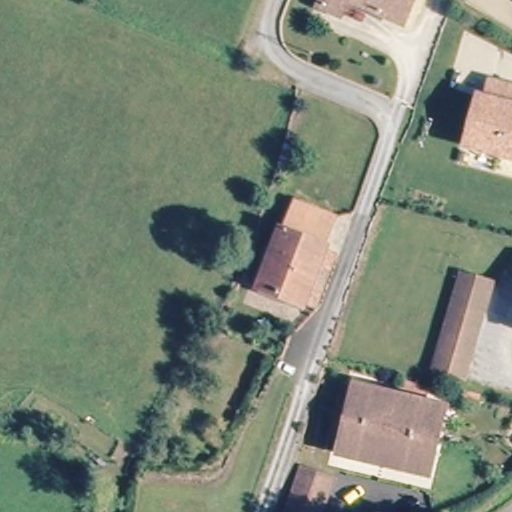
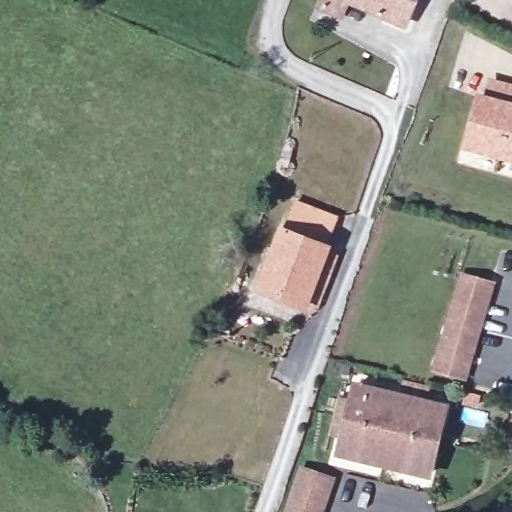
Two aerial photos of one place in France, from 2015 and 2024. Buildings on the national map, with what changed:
unchanged [(350,2),(344,16),(323,7),(326,0),(417,0),(407,26),(350,2)]
unchanged [(494,87),(512,91),(512,110),(489,104),(494,87)]
unchanged [(485,102),(489,104),(512,110),(512,162),(471,152),(485,102)]
unchanged [(331,286),(317,282),(310,303),(264,290),(292,210),(335,223),(322,266),(336,270),(331,286)]
unchanged [(433,367),(465,274),(493,282),(462,375),(433,367)]
unchanged [(359,387),(447,406),(432,472),(343,453),(359,387)]
unchanged [(302,468),(333,475),(323,512),(291,512),(302,468)]

